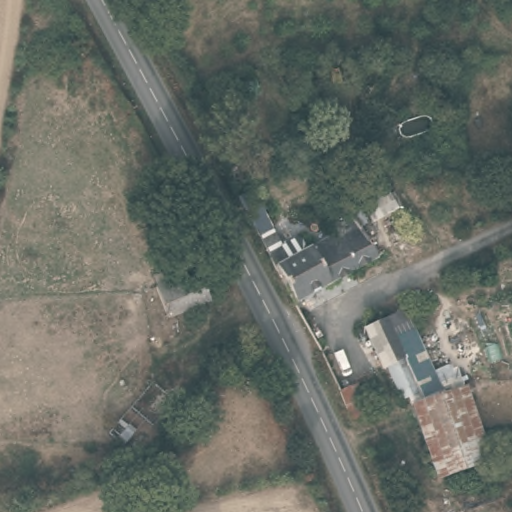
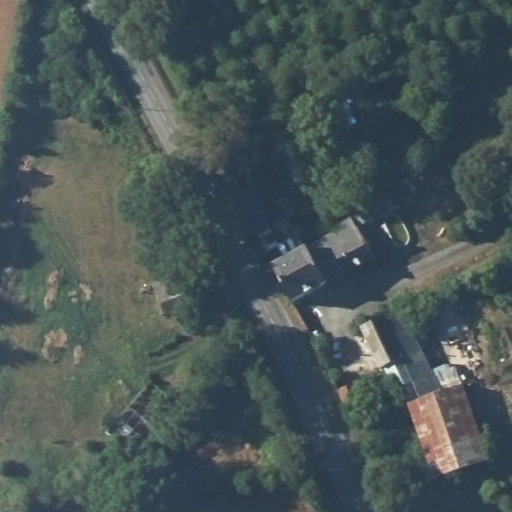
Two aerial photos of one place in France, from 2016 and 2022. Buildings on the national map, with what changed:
unchanged [(215,94),(223,109),(210,115),(219,132),(205,139),(189,108),(215,94)]
unchanged [(391,200),(403,218),(364,239),(384,271),(299,314),(243,210),(259,199),(271,219),(267,221),(285,257),(300,249),(301,251),(306,250),(313,259),(340,246),(334,232),(391,200)]
unchanged [(196,271),(212,304),(169,321),(156,286),(196,271)]
unchanged [(398,312),(442,393),(413,407),(409,399),(402,402),(399,394),(394,395),(384,373),(378,373),(356,332),(398,312)]
unchanged [(374,407),(357,417),(343,390),(362,382),(374,407)]
unchanged [(442,393),(462,384),(496,463),(444,480),(413,407),(442,393)]
unchanged [(134,433),(123,446),(109,434),(119,420),(134,433)]

